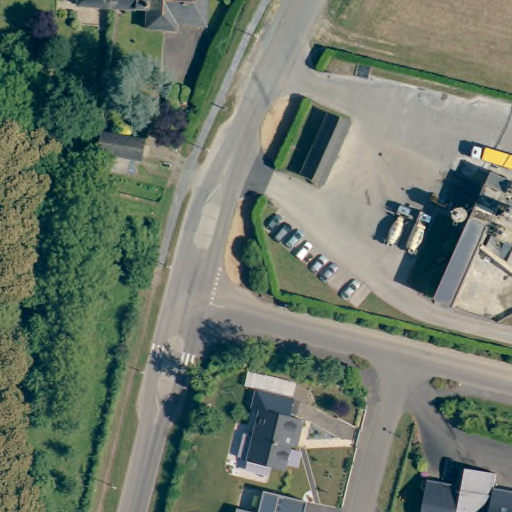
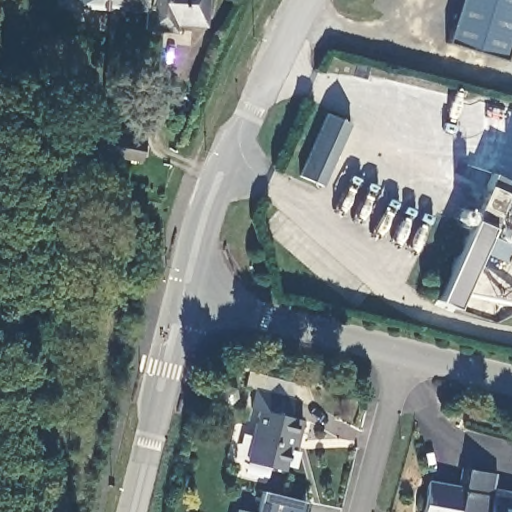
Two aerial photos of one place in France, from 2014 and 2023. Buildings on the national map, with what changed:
unchanged [(79,9),(79,0),(116,0),(115,11),(79,9)]
unchanged [(116,0),(211,0),(209,27),(179,26),(178,32),(147,31),(149,14),(119,12),(115,11),(116,0)]
new [(459,0),(512,0),(512,36),(505,60),(446,42),(459,0)]
unchanged [(350,121),(323,185),(300,175),(327,111),(350,121)]
unchanged [(120,161),(76,151),(79,134),(80,129),(125,139),(120,161)]
unchanged [(436,300),(475,210),(491,172),(510,181),(494,218),(456,308),(436,300)]
unchanged [(512,243),(512,253),(508,261),(485,251),(492,235),(512,243)]
unchanged [(303,418),(299,436),(293,435),(285,468),(246,459),(260,408),(303,418)]
unchanged [(454,485),(459,466),(497,475),(494,488),(512,492),(512,512),(419,512),(427,480),(454,485)]
unchanged [(306,503),(304,512),(259,512),(263,493),(306,503)]
unchanged [(247,512),(236,512),(236,510),(247,512)]

